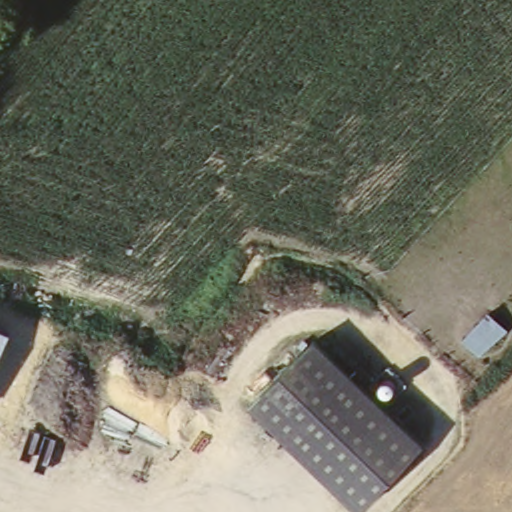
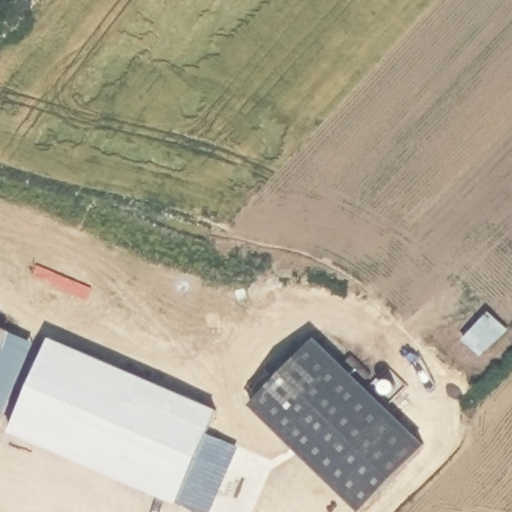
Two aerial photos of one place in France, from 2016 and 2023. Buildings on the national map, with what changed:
new [(507,327),(481,357),(461,341),(490,311),(507,327)]
unchanged [(0,415),(0,320),(36,336),(0,415)]
unchanged [(251,399),(319,333),(427,440),(362,507),(251,399)]
new [(217,407),(209,435),(239,445),(209,512),(200,512),(10,431),(50,337),(217,407)]

